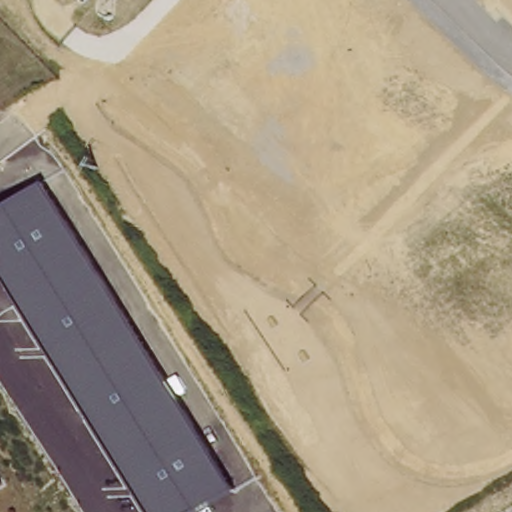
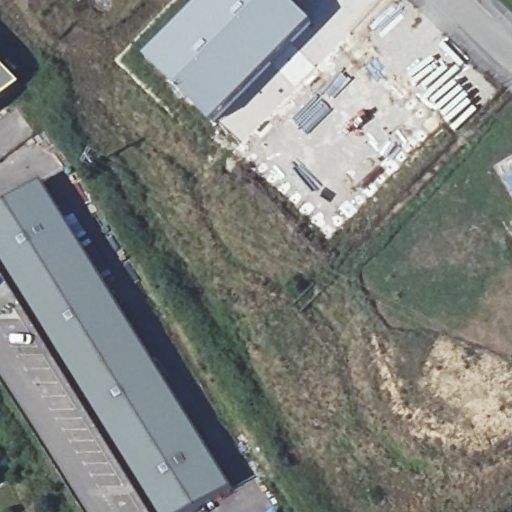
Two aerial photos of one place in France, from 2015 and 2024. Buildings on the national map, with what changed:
new [(205,0),(290,0),(314,24),(235,107),(214,126),(147,62),(205,0)]
unchanged [(233,487),(192,512),(148,512),(0,269),(0,209),(43,182),(233,487)]

